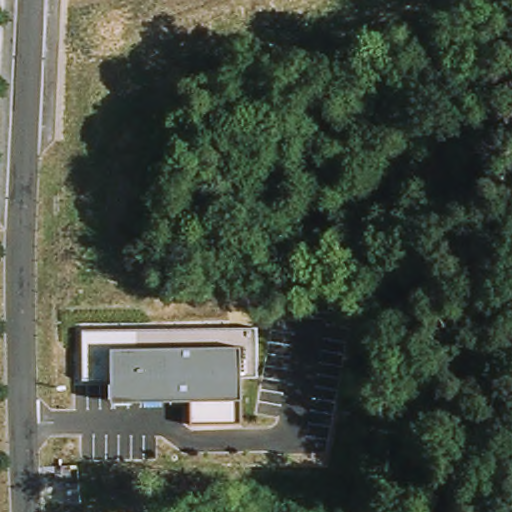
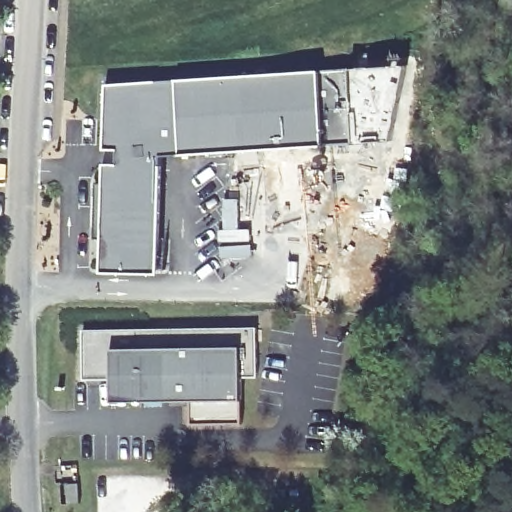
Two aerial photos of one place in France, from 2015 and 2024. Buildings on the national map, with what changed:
new [(102,272),(104,165),(119,165),(119,149),(105,149),(106,85),(320,71),(349,70),(353,144),(325,145),(161,154),(159,274),(102,272)]
unchanged [(257,328),(258,377),(241,378),(240,421),(191,422),(192,401),(112,404),(112,379),(85,381),(83,331),(257,328)]
demolished [(87,481),(89,500),(77,501),(76,482),(87,481)]
new [(81,486),(82,506),(71,506),(70,487),(81,486)]

